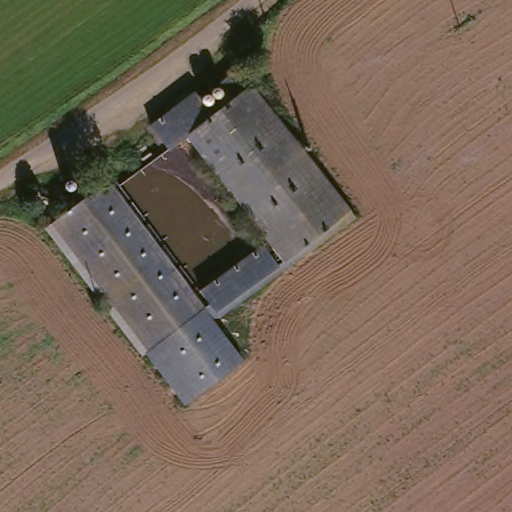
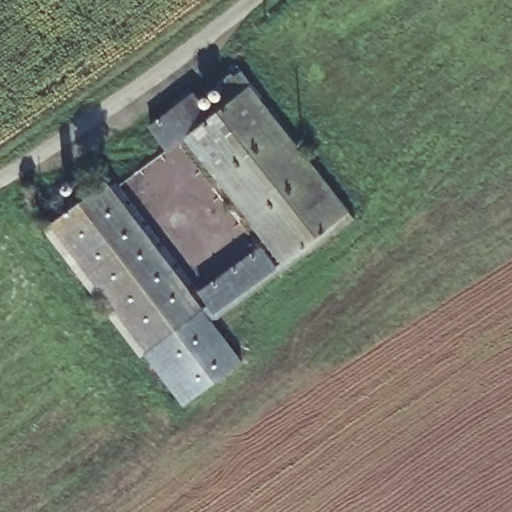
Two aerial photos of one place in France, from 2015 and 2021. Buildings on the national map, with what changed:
unchanged [(251,70),(259,81),(236,97),(228,86),(251,70)]
unchanged [(198,137),(187,146),(181,151),(168,133),(211,99),(224,118),(264,87),(362,216),(296,263),(198,137)]
unchanged [(243,359),(188,400),(57,231),(111,190),(243,359)]
unchanged [(223,317),(207,296),(208,295),(269,249),(271,248),(287,270),(223,317)]

